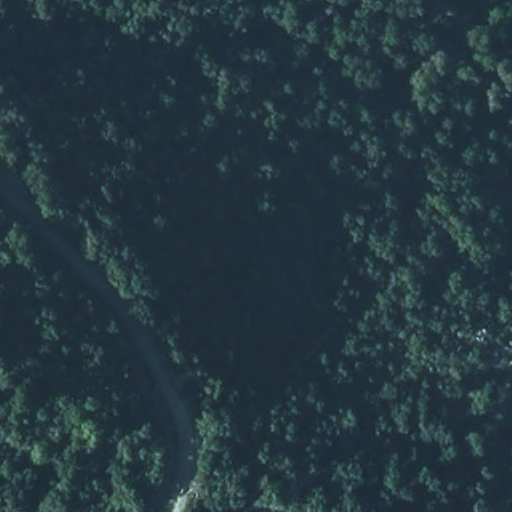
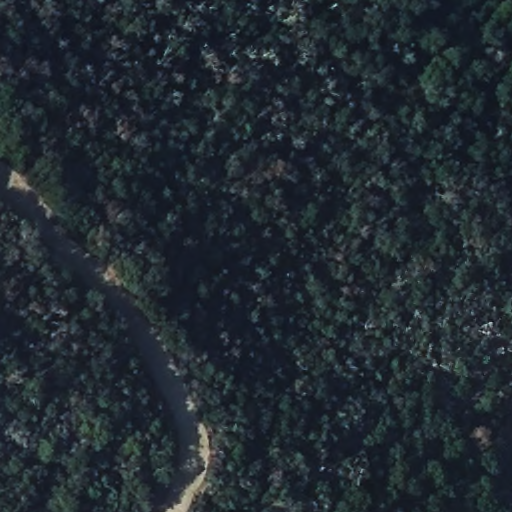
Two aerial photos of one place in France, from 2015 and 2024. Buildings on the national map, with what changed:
[]

